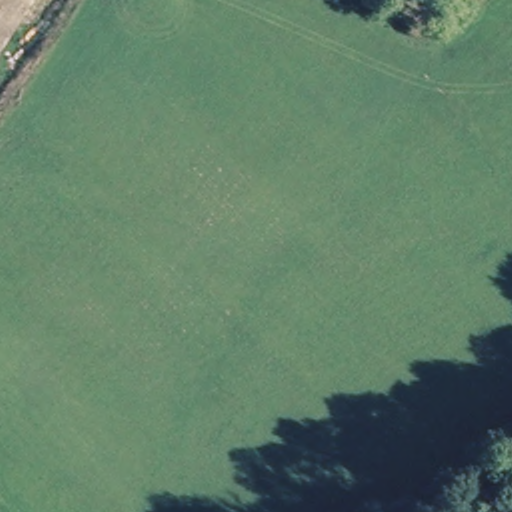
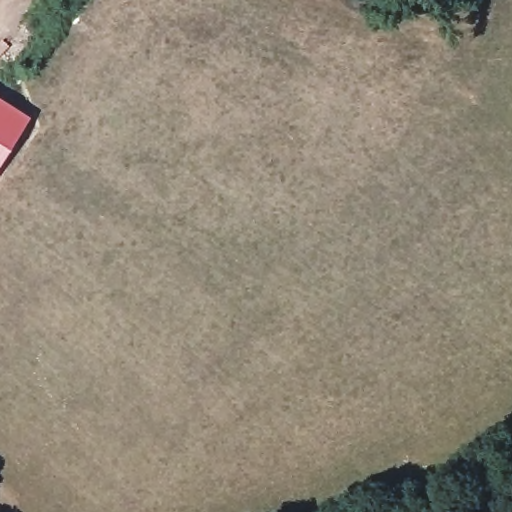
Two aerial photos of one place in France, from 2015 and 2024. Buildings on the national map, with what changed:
new [(0,165),(0,101),(29,119),(0,165)]

